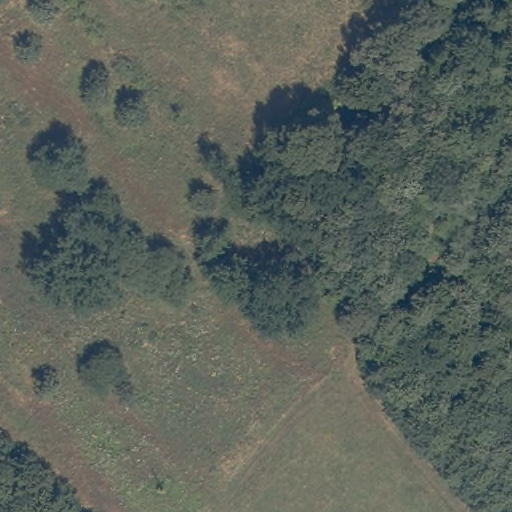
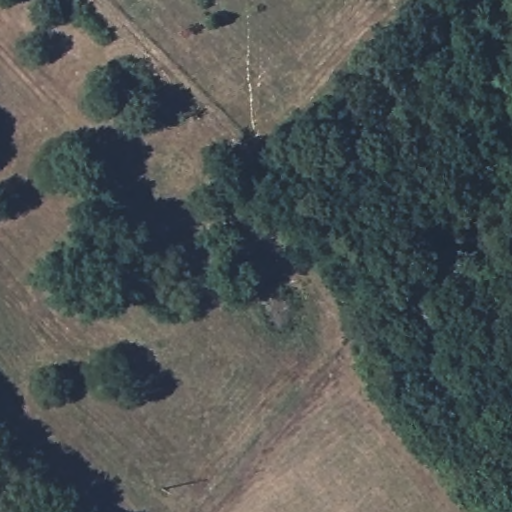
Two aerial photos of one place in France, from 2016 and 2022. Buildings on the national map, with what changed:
unchanged [(422,251),(431,244),(445,257),(436,266),(422,251)]

